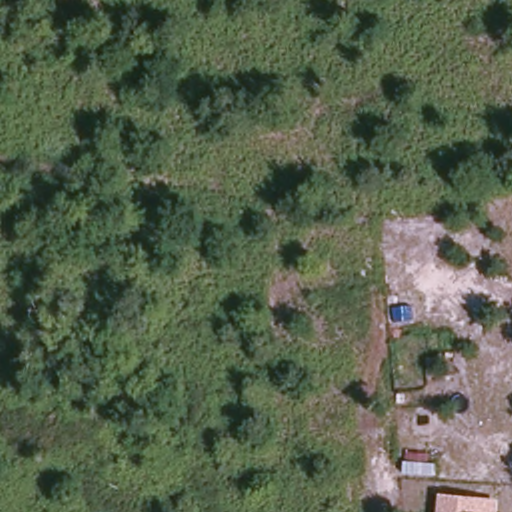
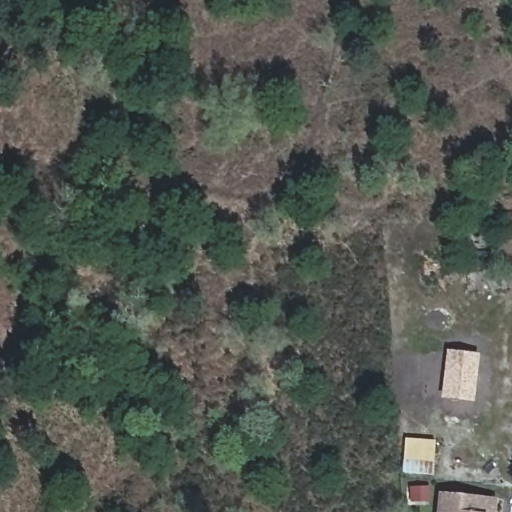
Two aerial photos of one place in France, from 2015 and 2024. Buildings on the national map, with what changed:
new [(448,351),(476,355),(471,398),(443,395),(448,351)]
unchanged [(437,512),(439,491),(499,498),(498,512),(437,512)]

